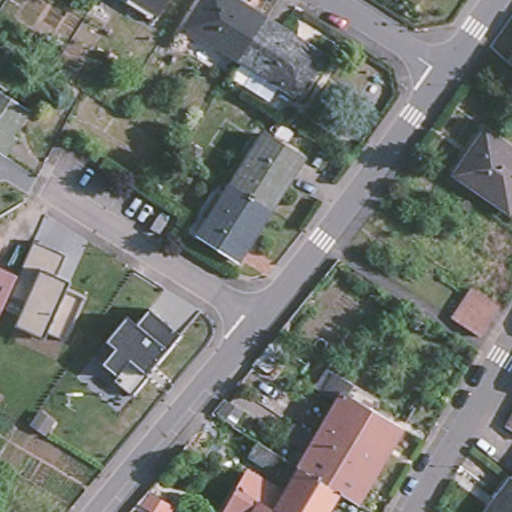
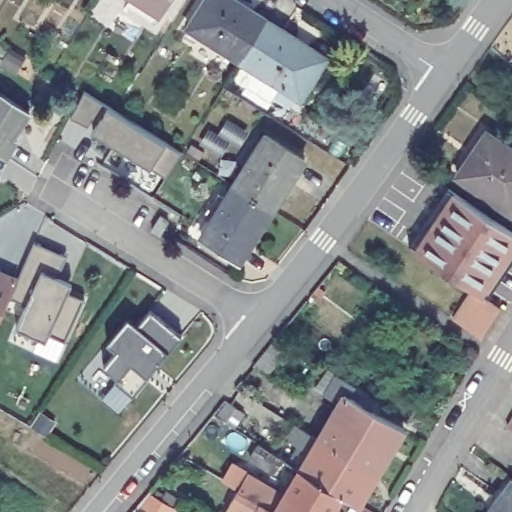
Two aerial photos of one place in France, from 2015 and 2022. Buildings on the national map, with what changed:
unchanged [(119,0),(167,0),(158,14),(153,22),(119,0)]
unchanged [(188,26),(203,0),(236,0),(266,18),(239,59),(188,26)]
unchanged [(266,18),(326,56),(299,97),(239,59),(266,18)]
unchanged [(0,89),(32,110),(15,136),(20,139),(9,156),(0,150),(0,89)]
new [(107,107),(164,143),(181,152),(165,176),(149,166),(92,129),(98,121),(91,117),(86,125),(69,117),(83,92),(107,107)]
unchanged [(488,130),(512,147),(512,212),(457,175),(488,130)]
unchanged [(233,186),(265,135),(304,159),(271,210),(233,186)]
unchanged [(239,261),(201,237),(233,186),(271,210),(239,261)]
new [(512,230),(512,258),(487,298),(472,288),(473,287),(412,248),(452,190),(512,230)]
unchanged [(41,274),(24,263),(33,243),(65,257),(54,279),(68,284),(64,296),(78,302),(61,341),(48,335),(44,340),(16,326),(41,274)]
unchanged [(0,312),(0,273),(15,278),(0,312)]
unchanged [(472,288),(499,307),(480,337),(452,318),(472,288)]
unchanged [(127,317),(137,327),(151,313),(178,338),(148,374),(130,394),(116,379),(101,367),(116,349),(107,341),(127,317)]
unchanged [(344,407),(334,401),(340,391),(346,381),(379,402),(373,412),(409,434),(394,459),(334,423),(344,407)]
unchanged [(509,425),(512,420),(512,427),(509,425)]
unchanged [(348,498),(346,499),(304,473),(305,472),(315,455),(295,442),(304,429),(324,441),(334,423),(394,459),(382,479),(364,510),(348,498)]
unchanged [(258,441),(284,457),(274,472),(249,456),(258,441)]
unchanged [(512,472),(512,476),(510,475),(512,472)]
unchanged [(252,478),(289,500),(304,473),(346,499),(339,512),(233,512),(243,493),(252,478)]
unchanged [(482,512),(510,475),(512,476),(512,512),(482,512)]

